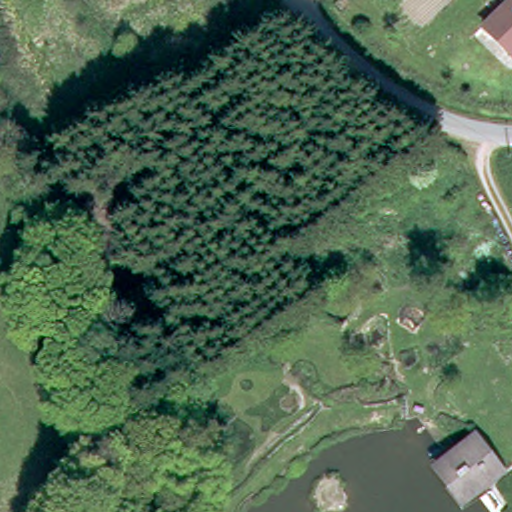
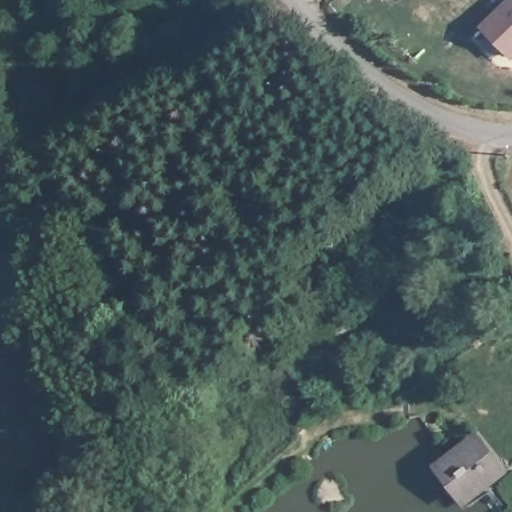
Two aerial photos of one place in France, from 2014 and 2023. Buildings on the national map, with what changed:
unchanged [(511,55),(483,27),(510,0),(512,0),(512,54),(511,55)]
unchanged [(472,436),(499,469),(489,477),(467,496),(439,462),(459,447),(472,436)]

